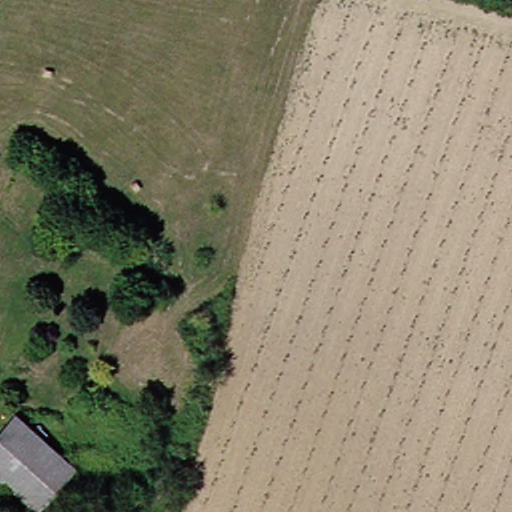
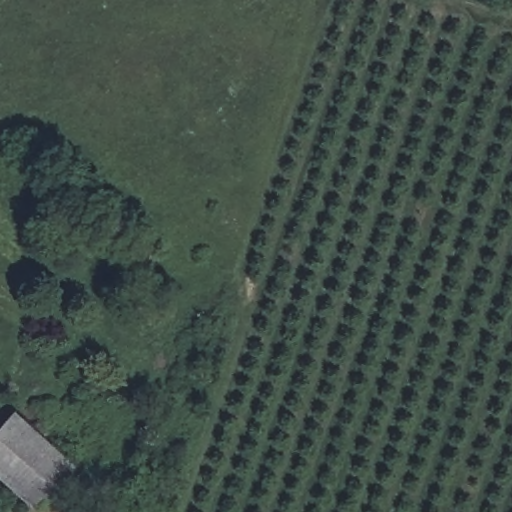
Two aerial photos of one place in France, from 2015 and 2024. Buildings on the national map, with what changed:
unchanged [(35,511),(0,479),(0,432),(14,414),(72,466),(35,511)]

